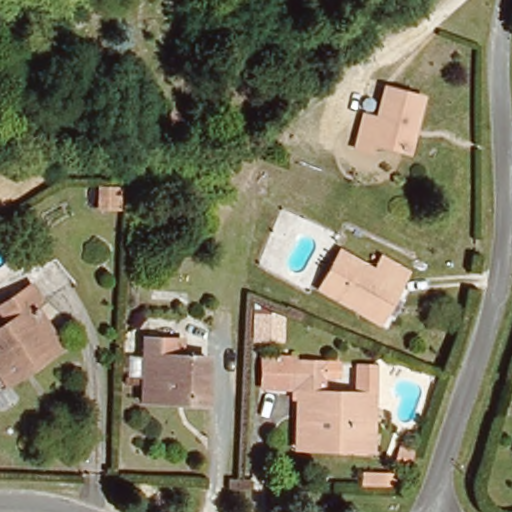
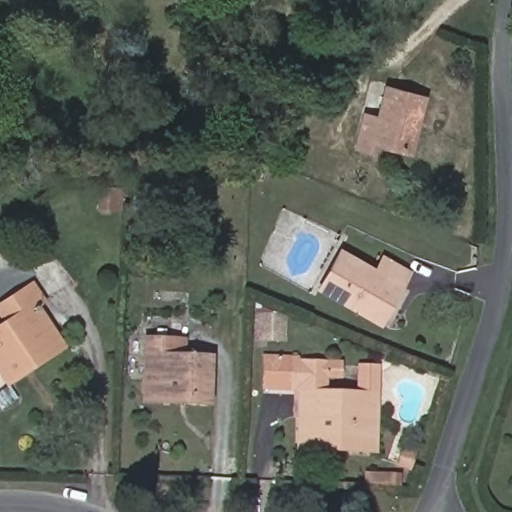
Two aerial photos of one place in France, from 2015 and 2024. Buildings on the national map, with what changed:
unchanged [(368,113),(382,117),(390,88),(427,97),(410,150),(377,141),(372,154),(358,150),(368,113)]
unchanged [(371,314),(320,286),(338,249),(375,267),(380,255),(406,267),(400,279),(380,318),(371,314)]
unchanged [(1,307),(34,285),(44,299),(32,307),(56,339),(24,364),(27,369),(10,380),(0,388),(0,330),(10,323),(1,307)]
unchanged [(146,353),(147,337),(183,338),(183,359),(210,361),(209,405),(189,404),(145,403),(146,353)]
unchanged [(303,412),(304,393),(265,391),(266,360),(302,361),(302,368),(326,369),(326,394),(380,397),(377,447),(343,446),(301,444),(303,412)]
unchanged [(356,364),(381,365),(380,391),(355,391),(356,364)]

